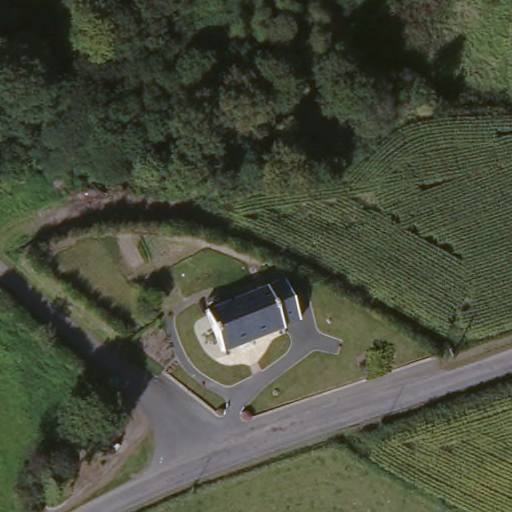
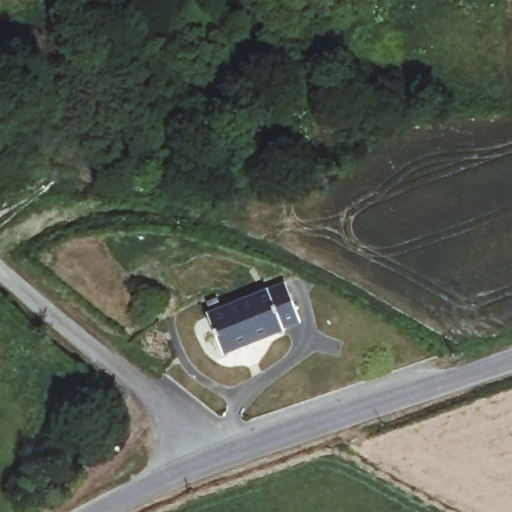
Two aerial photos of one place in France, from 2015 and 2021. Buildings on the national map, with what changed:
unchanged [(283,286),(296,321),(219,351),(206,312),(283,286)]

